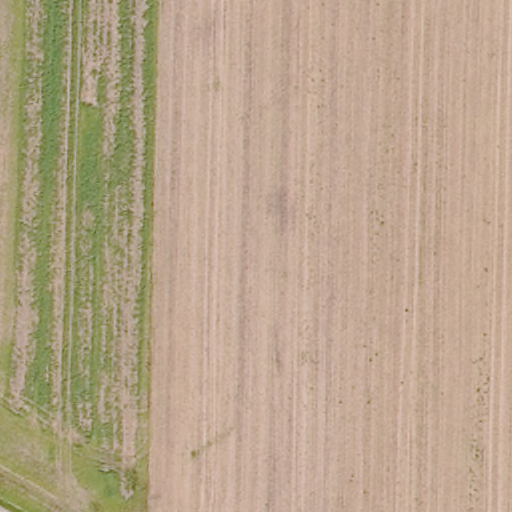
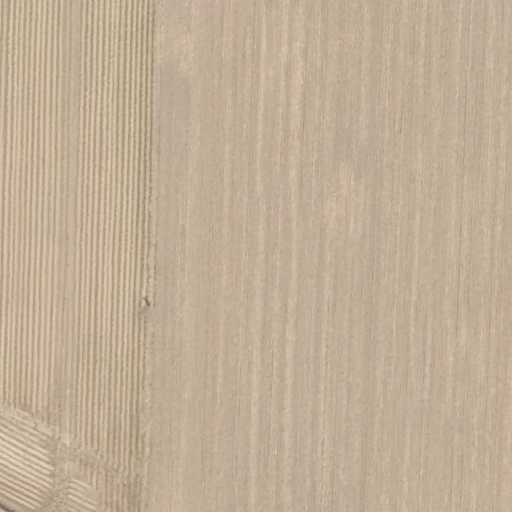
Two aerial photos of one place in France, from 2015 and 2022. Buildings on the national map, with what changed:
[]

